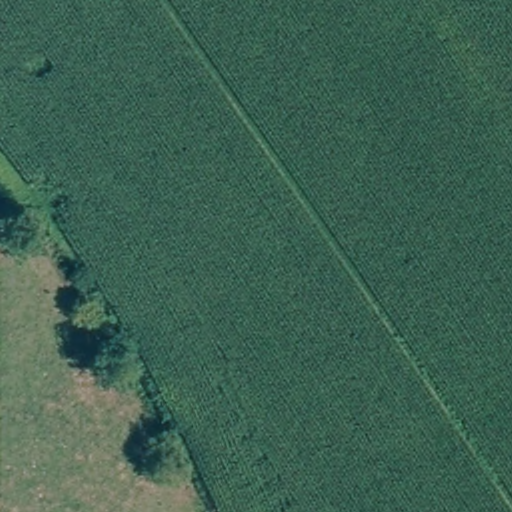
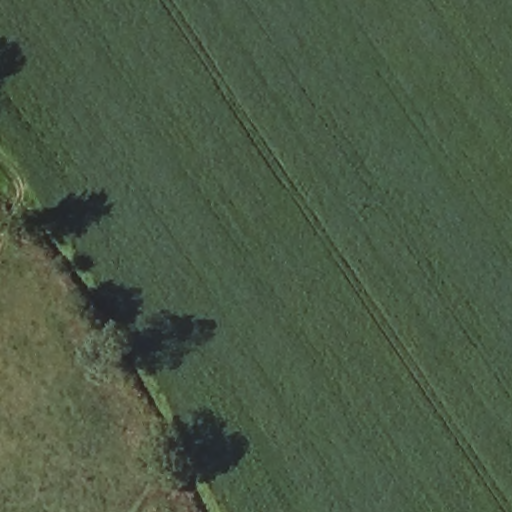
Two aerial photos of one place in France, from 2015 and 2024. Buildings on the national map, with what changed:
[]

